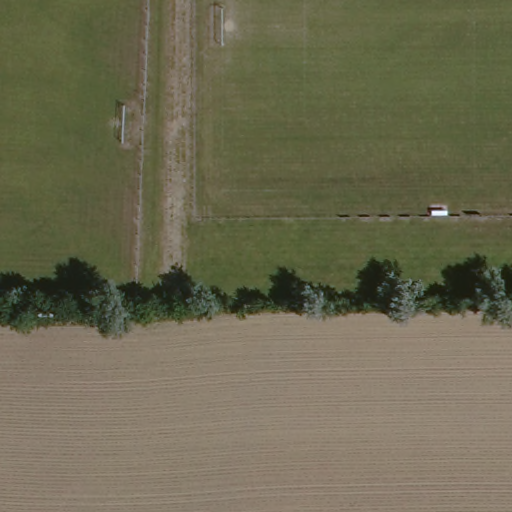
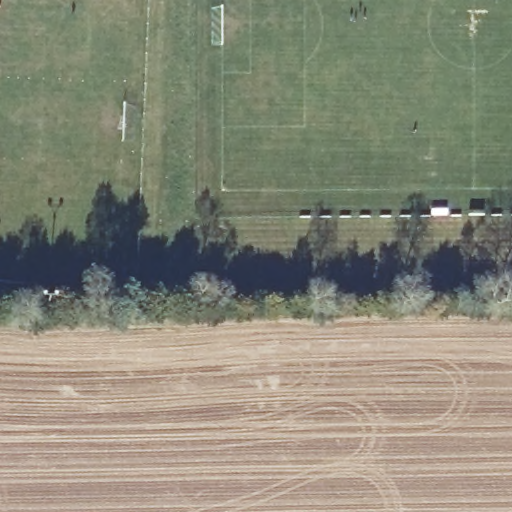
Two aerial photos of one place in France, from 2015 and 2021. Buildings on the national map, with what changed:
[]

